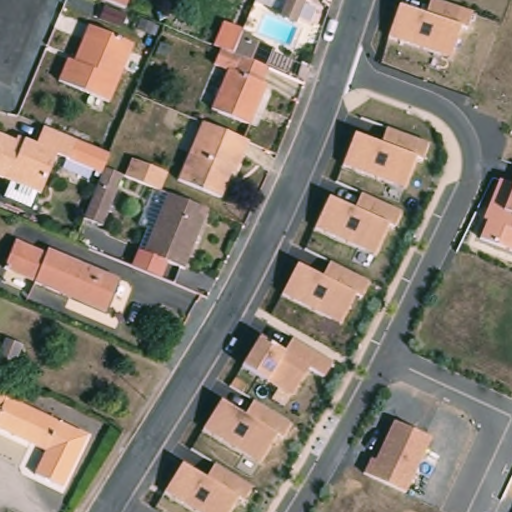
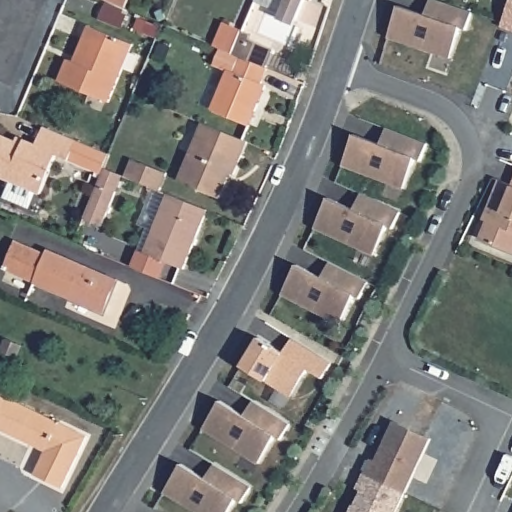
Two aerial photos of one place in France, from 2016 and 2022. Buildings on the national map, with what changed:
unchanged [(125,13),(112,7),(94,0),(132,0),(125,13)]
unchanged [(282,22),(285,16),(250,2),(252,0),(307,0),(298,21),(296,28),(282,22)]
unchanged [(387,39),(398,6),(425,14),(430,0),(433,0),(472,12),(468,30),(461,27),(451,57),(387,39)]
new [(512,30),(504,27),(512,6),(512,30)]
unchanged [(248,127),(211,111),(227,71),(213,66),(222,50),(215,47),(225,23),(242,32),(243,30),(251,34),(248,40),(274,50),(266,69),(258,85),(266,87),(248,127)]
unchanged [(108,106),(59,86),(67,64),(74,66),(90,31),(132,50),(108,106)]
unchanged [(234,180),(229,177),(220,201),(178,185),(203,128),(249,147),(234,180)]
unchanged [(343,166),(353,135),(382,143),(386,129),(428,143),(423,159),(415,157),(402,189),(343,166)]
unchanged [(102,172),(102,174),(100,177),(57,160),(39,200),(0,184),(0,142),(19,150),(22,145),(34,150),(43,131),(75,145),(108,159),(102,172)]
unchanged [(165,179),(158,195),(124,181),(130,165),(165,179)]
unchanged [(80,224),(100,177),(102,174),(102,172),(124,181),(102,231),(80,224)]
unchanged [(510,189),(512,182),(512,254),(476,240),(497,181),(510,189)]
unchanged [(314,229),(328,197),(355,209),(360,195),(401,212),(394,227),(389,225),(377,255),(314,229)]
unchanged [(182,273),(143,257),(167,200),(207,215),(182,273)]
unchanged [(102,315),(0,268),(11,241),(41,254),(44,249),(116,280),(102,315)]
unchanged [(282,295),(298,265),(323,276),(329,263),(367,281),(360,296),(356,295),(340,322),(282,295)]
unchanged [(243,366),(259,337),(283,350),(291,337),(332,360),(323,378),(308,370),(292,395),(243,366)]
unchanged [(24,347),(14,370),(0,364),(0,354),(5,339),(24,347)]
unchanged [(203,426),(221,397),(245,411),(252,401),(293,425),(283,440),(278,437),(261,465),(203,426)]
unchanged [(64,491),(37,478),(49,456),(0,433),(0,399),(88,440),(64,491)]
unchanged [(361,473),(370,458),(376,461),(394,422),(433,439),(407,494),(361,473)]
unchanged [(182,465),(206,477),(213,465),(252,485),(244,501),(237,498),(229,512),(195,512),(165,492),(182,465)]
new [(360,490),(356,487),(361,473),(407,494),(397,512),(349,512),(351,505),(354,505),(360,490)]

